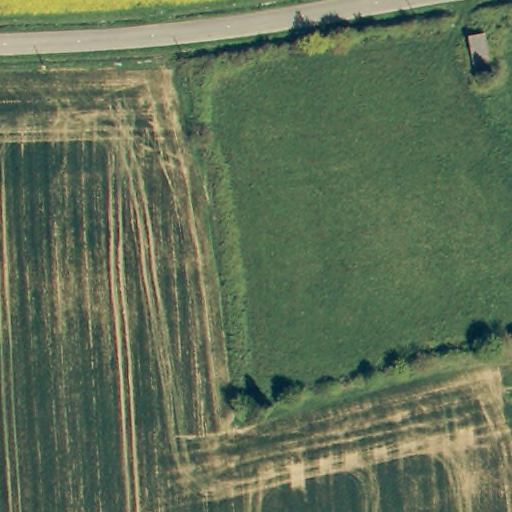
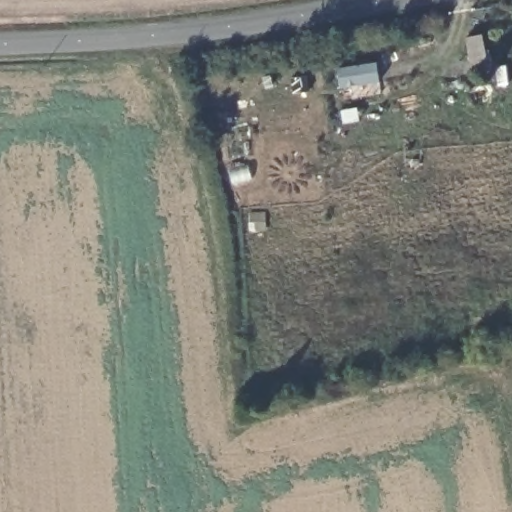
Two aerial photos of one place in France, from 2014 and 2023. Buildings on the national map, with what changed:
unchanged [(486,66),(471,68),(466,36),(481,33),(486,66)]
new [(380,82),(340,89),(336,67),(376,62),(380,82)]

